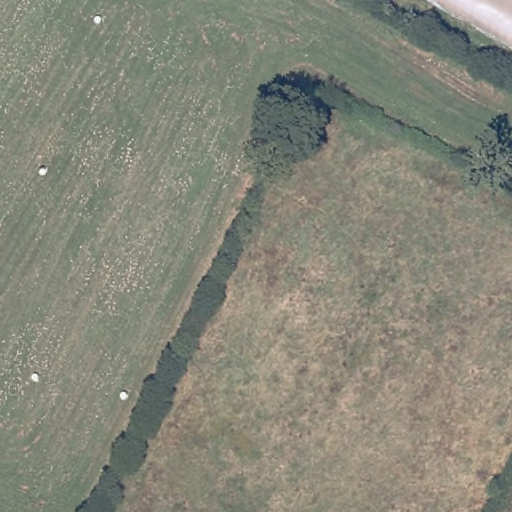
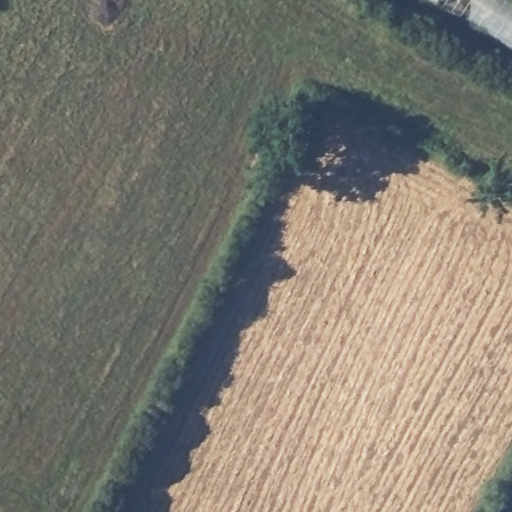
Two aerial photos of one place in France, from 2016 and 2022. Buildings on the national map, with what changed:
unchanged [(512,47),(434,0),(512,0),(512,47)]

